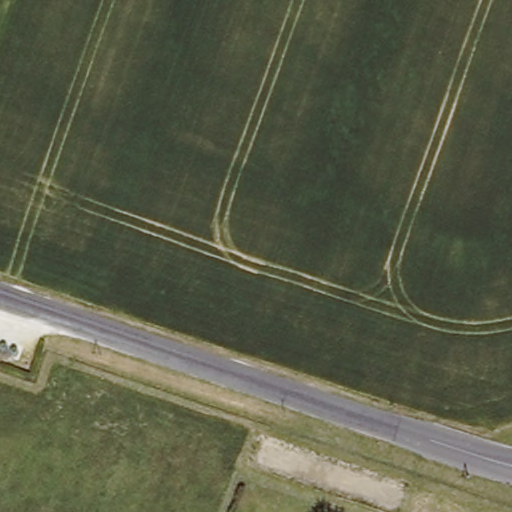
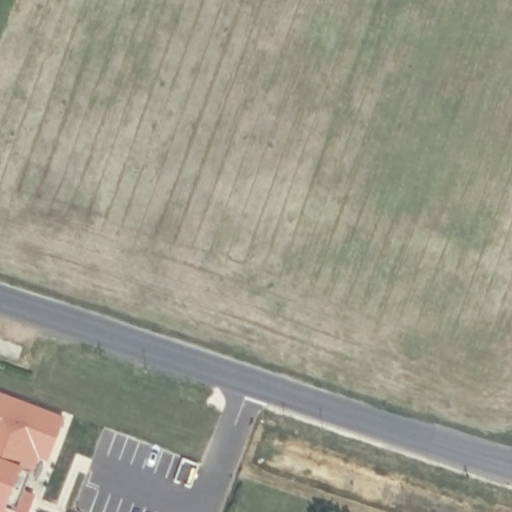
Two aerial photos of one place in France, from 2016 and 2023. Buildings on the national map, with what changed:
new [(63,420),(49,459),(37,455),(23,493),(34,498),(28,512),(0,512),(0,396),(63,420)]

